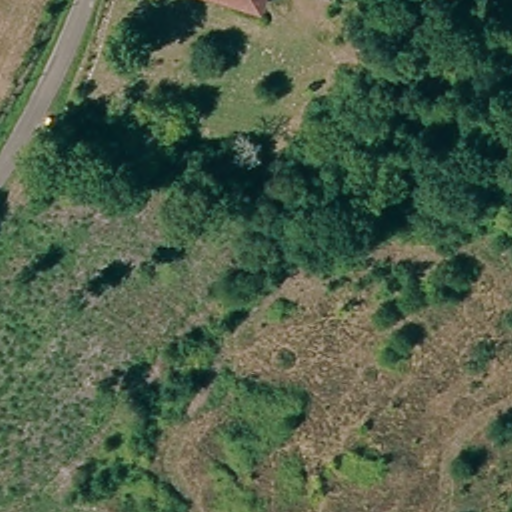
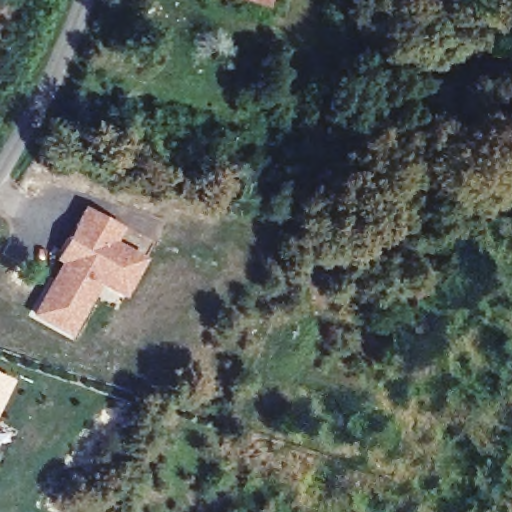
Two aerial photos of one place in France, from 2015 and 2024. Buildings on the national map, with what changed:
unchanged [(260,3),(252,0),(261,0),(260,3)]
new [(117,292),(106,286),(92,279),(64,332),(30,313),(59,260),(52,257),(63,237),(78,209),(112,227),(105,241),(125,252),(135,258),(117,292)]
new [(0,405),(0,375),(11,381),(0,405)]

